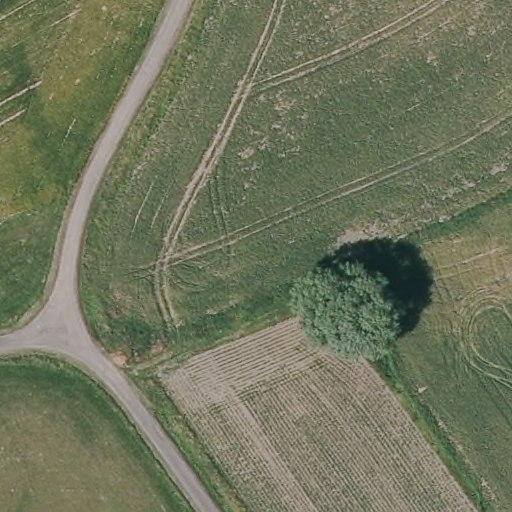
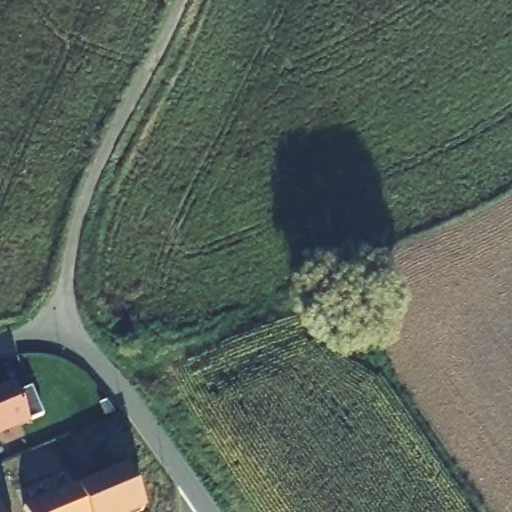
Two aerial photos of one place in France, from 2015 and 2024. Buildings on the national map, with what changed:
new [(0,392),(13,387),(16,396),(30,390),(41,419),(0,435),(0,392)]
new [(84,512),(75,491),(127,469),(142,512),(84,512)]
new [(84,512),(23,512),(75,491),(84,512)]

